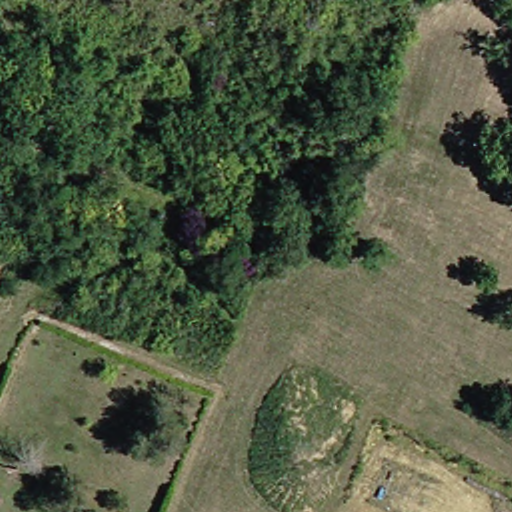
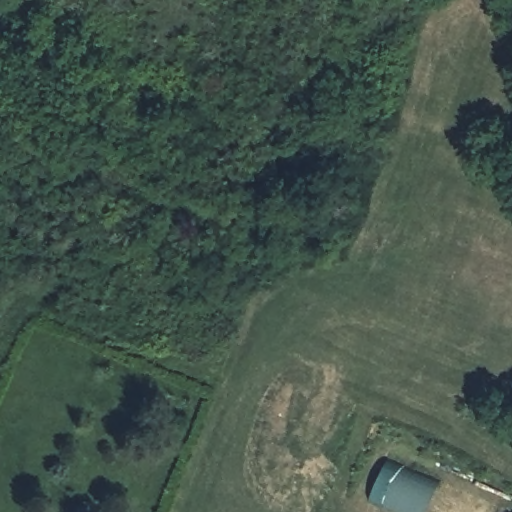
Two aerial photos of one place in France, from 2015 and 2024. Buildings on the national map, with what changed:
new [(438,486),(427,512),(412,512),(373,496),(387,464),(438,486)]

